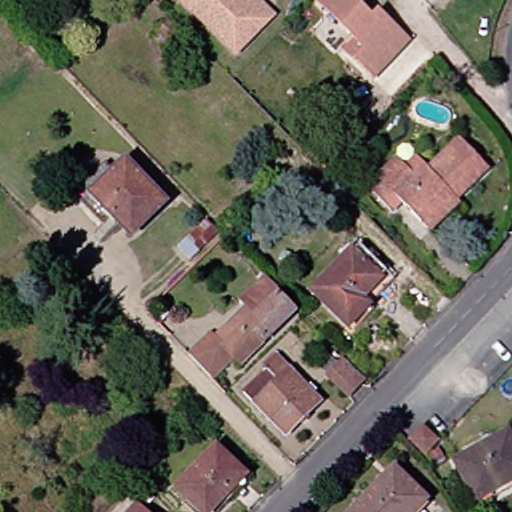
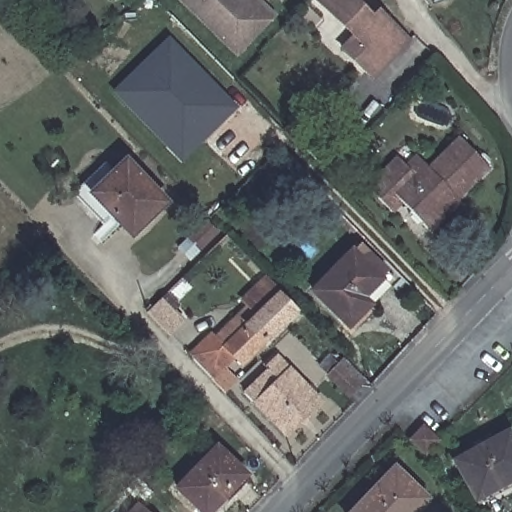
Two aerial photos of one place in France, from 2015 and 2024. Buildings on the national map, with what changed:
unchanged [(184,0),(258,0),(274,18),(234,55),(184,0)]
unchanged [(346,40),(308,0),(355,0),(369,16),(375,10),(396,32),(404,40),(367,75),(359,67),(339,46),(346,40)]
new [(182,163),(114,91),(167,40),(237,109),(182,163)]
unchanged [(416,227),(395,206),(386,216),(362,193),(392,165),(396,170),(409,158),(416,164),(414,167),(420,174),(455,141),(484,170),(452,202),(422,233),(416,227)]
unchanged [(75,194),(83,186),(104,165),(113,174),(124,163),(163,205),(132,237),(113,217),(105,225),(75,194)]
new [(190,262),(177,249),(205,221),(218,234),(190,262)]
unchanged [(370,264),(384,279),(339,326),(303,291),(342,251),(361,272),(370,264)]
unchanged [(215,337),(244,308),(265,287),(273,296),(276,293),(293,310),(231,371),(222,361),(208,376),(187,354),(210,331),(215,337)]
unchanged [(279,435),(237,392),(260,369),(258,367),(271,354),(315,398),(279,435)]
unchanged [(339,400),(318,380),(329,369),(349,389),(339,400)]
unchanged [(473,496),(452,456),(506,428),(512,438),(512,482),(476,501),(473,496)]
unchanged [(426,431),(442,445),(428,459),(413,445),(426,431)]
unchanged [(215,496),(218,499),(206,512),(195,512),(172,489),(211,448),(236,474),(215,496)]
unchanged [(416,512),(347,512),(388,469),(419,499),(424,504),(416,512)]
unchanged [(135,506),(142,512),(129,512),(135,506)]

